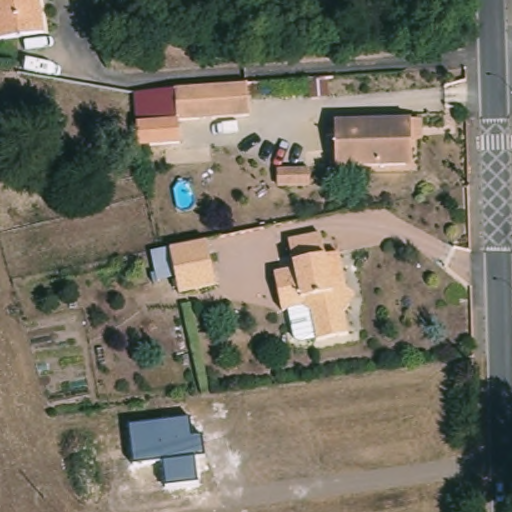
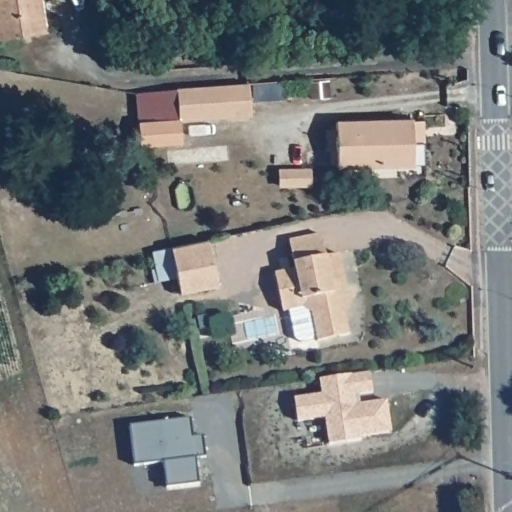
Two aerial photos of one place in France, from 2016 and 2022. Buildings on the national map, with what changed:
unchanged [(0,43),(0,0),(39,0),(44,37),(0,43)]
unchanged [(251,121),(174,127),(173,95),(236,89),(247,87),(251,121)]
unchanged [(137,131),(134,98),(173,95),(174,127),(137,131)]
unchanged [(410,120),(411,139),(398,140),(401,170),(338,175),(335,125),(410,120)]
new [(325,180),(326,198),(296,200),(295,183),(325,180)]
unchanged [(297,270),(292,240),(323,232),(331,261),(341,257),(346,280),(337,281),(342,300),(348,298),(353,318),(342,320),(346,342),(315,348),(307,319),(282,322),(273,275),(297,270)]
unchanged [(191,246),(204,242),(216,288),(180,297),(167,251),(191,246)]
new [(321,394),(319,379),(370,373),(372,392),(358,394),(360,403),(386,400),(390,432),(360,435),(360,440),(328,444),(325,418),(297,421),(293,397),(321,394)]
unchanged [(130,428),(190,420),(192,439),(202,437),(205,456),(194,458),(197,483),(166,487),(163,461),(135,463),(130,428)]

